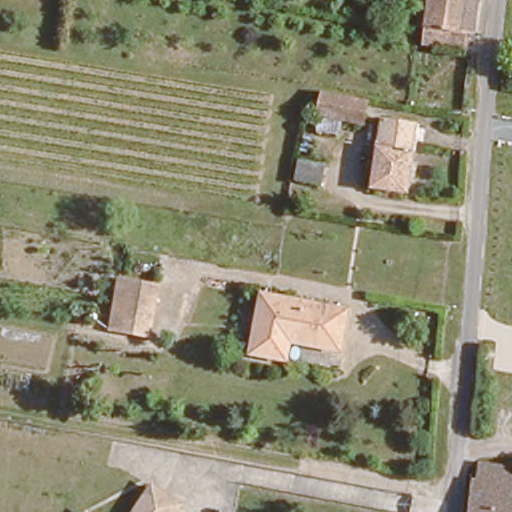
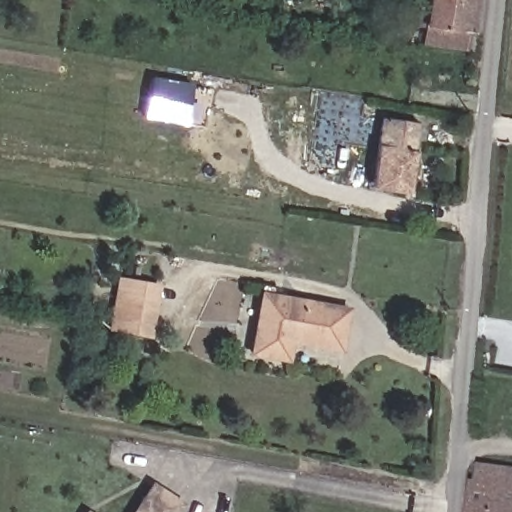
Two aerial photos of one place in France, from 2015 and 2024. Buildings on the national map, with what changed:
unchanged [(426,7),(427,0),(475,0),(473,31),(425,25),(426,7)]
new [(147,75),(190,82),(184,126),(139,119),(147,75)]
unchanged [(361,121),(341,120),(337,131),(313,127),(318,85),(365,97),(361,121)]
unchanged [(393,184),(372,180),(380,119),(415,125),(408,187),(393,184)]
unchanged [(109,321),(118,272),(155,280),(145,328),(109,321)]
unchanged [(277,332),(273,350),(250,346),(261,287),(346,304),(337,343),(277,332)]
unchanged [(470,477),(476,477),(480,460),(512,465),(512,512),(466,512),(470,477)]
unchanged [(149,497),(170,512),(137,512),(149,497)]
unchanged [(90,510),(92,512),(88,512),(90,510)]

